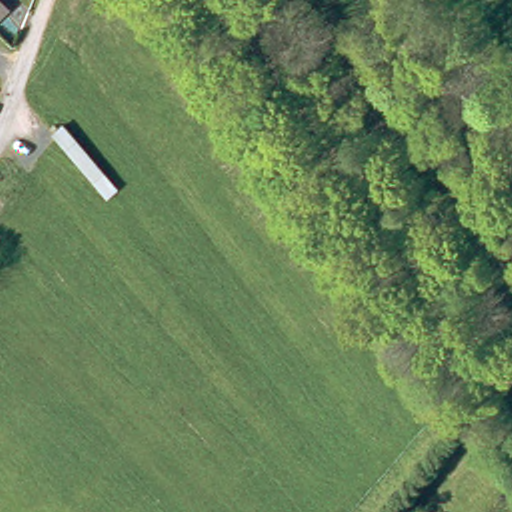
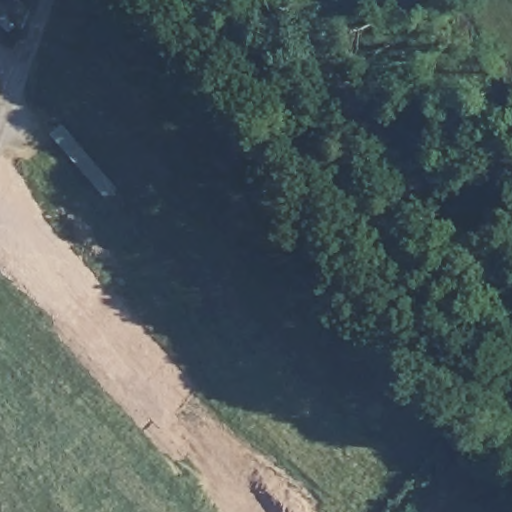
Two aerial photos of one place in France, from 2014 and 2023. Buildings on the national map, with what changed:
[]

